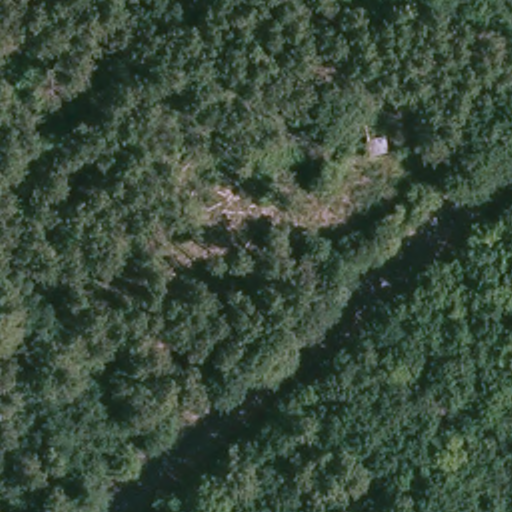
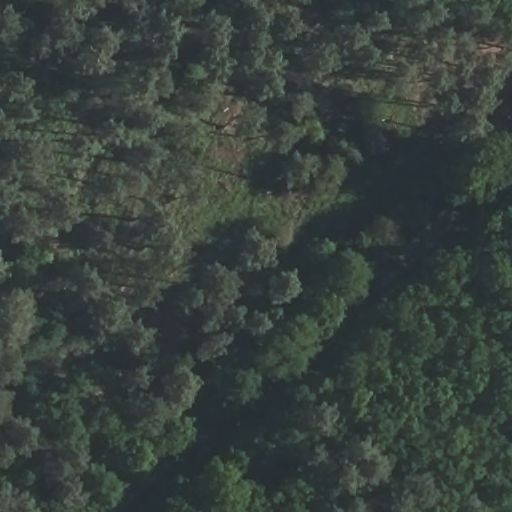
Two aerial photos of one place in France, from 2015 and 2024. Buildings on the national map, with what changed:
unchanged [(353,160),(353,145),(384,137),(384,151),(353,160)]

